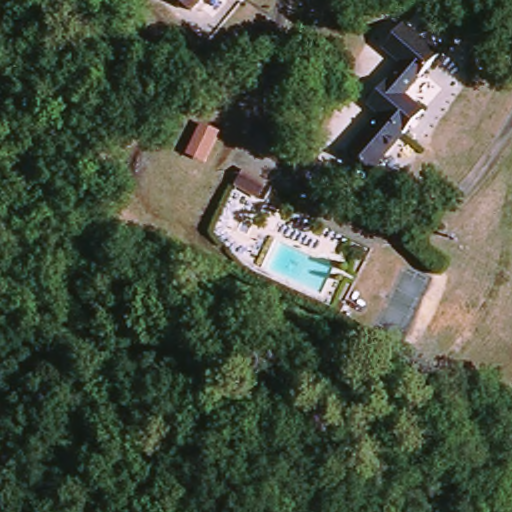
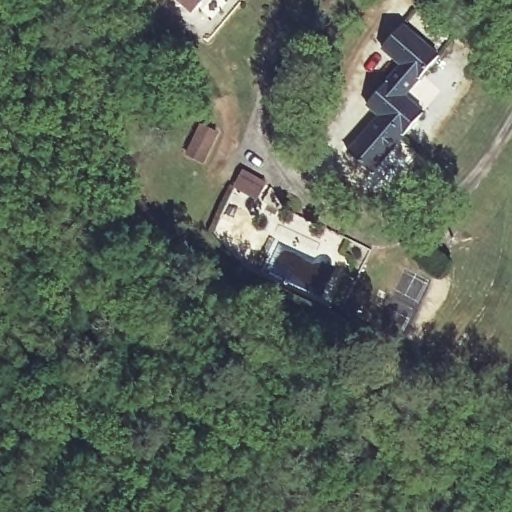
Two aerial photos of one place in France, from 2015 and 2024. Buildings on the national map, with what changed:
unchanged [(171,0),(200,0),(186,14),(171,0)]
unchanged [(383,48),(404,25),(440,57),(406,96),(423,111),(371,171),(345,148),(377,111),(365,101),(400,63),(383,48)]
unchanged [(235,166),(255,180),(242,198),(221,183),(235,166)]

